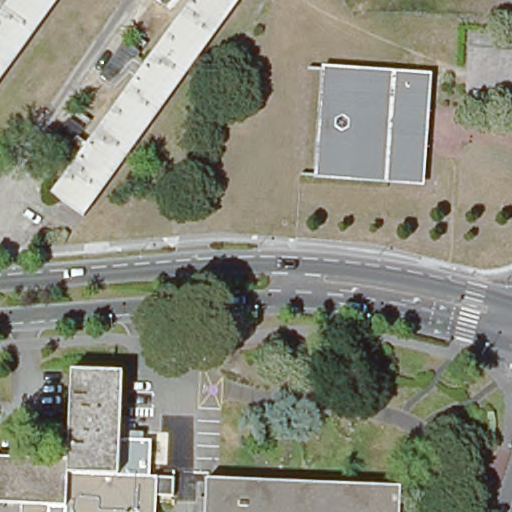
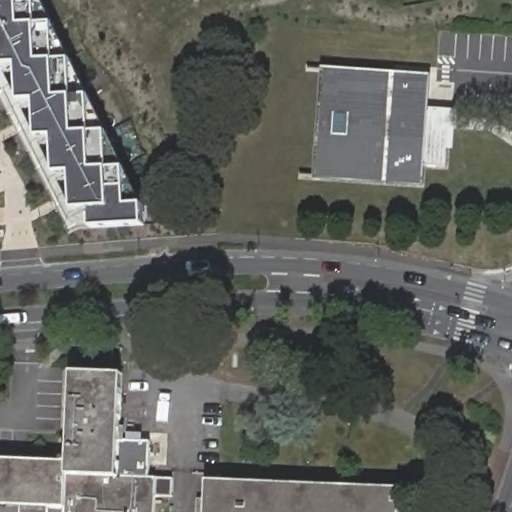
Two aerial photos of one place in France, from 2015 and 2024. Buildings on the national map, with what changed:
demolished [(12,0),(55,0),(0,76),(0,16),(12,0)]
new [(36,24),(52,22),(54,61),(70,60),(73,98),(87,96),(90,133),(107,133),(109,169),(123,169),(127,203),(141,204),(141,222),(90,227),(91,208),(79,207),(76,172),(60,172),(57,136),(43,136),(43,101),(25,100),(24,65),(7,66),(5,28),(0,28),(0,0),(36,0),(36,24)]
demolished [(197,0),(239,0),(84,218),(86,220),(84,223),(50,198),(51,195),(55,198),(197,0)]
demolished [(165,10),(155,3),(157,0),(176,0),(165,10)]
demolished [(141,56),(134,65),(108,87),(99,80),(125,45),(141,56)]
unchanged [(386,183),(317,178),(325,70),(393,75),(423,77),(422,85),(421,107),(418,156),(416,178),(416,185),(386,183)]
demolished [(84,136),(78,144),(52,166),(42,160),(68,124),(84,136)]
unchanged [(0,504),(0,458),(69,461),(74,372),(124,374),(122,425),(125,426),(125,441),(151,441),(149,478),(157,479),(172,480),(171,495),(171,496),(156,495),(156,512),(21,512),(21,506),(0,504)]
unchanged [(200,499),(201,480),(393,489),(393,512),(191,512),(191,498),(200,499)]

